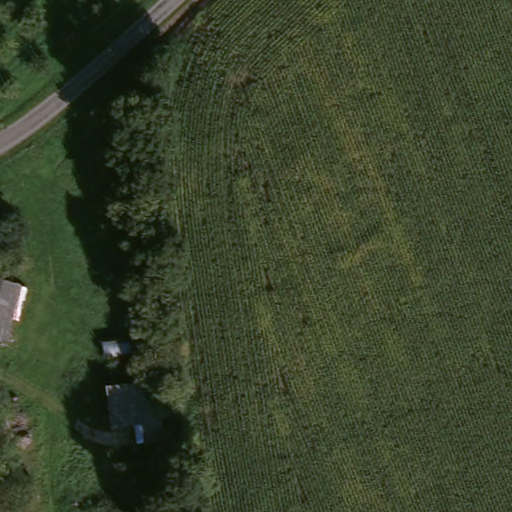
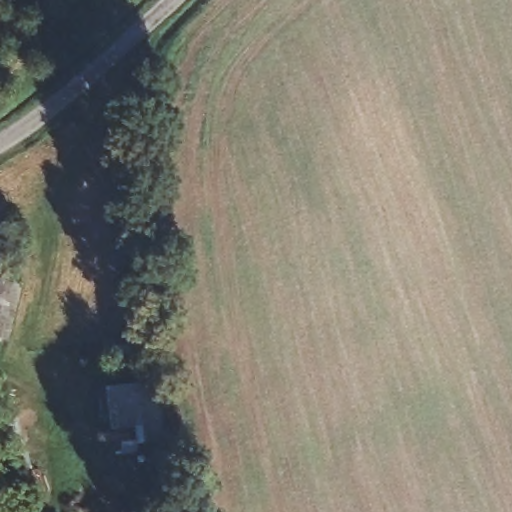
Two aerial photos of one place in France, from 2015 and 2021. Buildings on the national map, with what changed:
unchanged [(0,317),(0,287),(6,289),(0,317)]
unchanged [(14,352),(0,349),(0,317),(6,289),(26,296),(14,352)]
unchanged [(147,373),(159,430),(116,438),(104,381),(147,373)]

